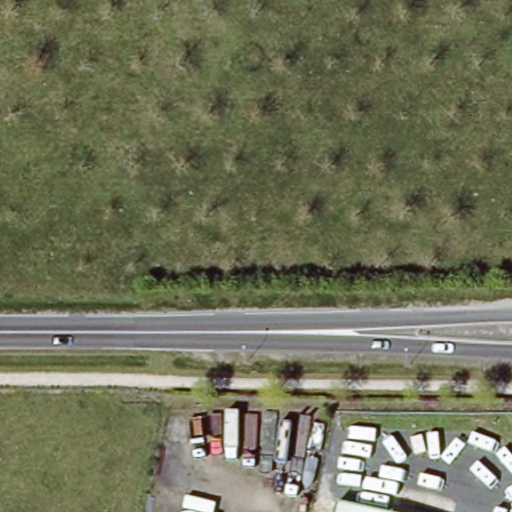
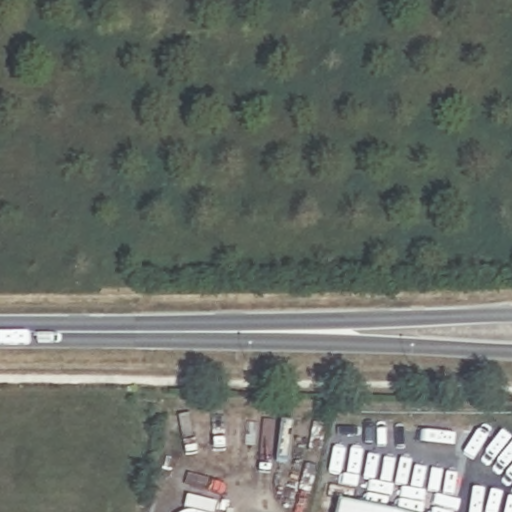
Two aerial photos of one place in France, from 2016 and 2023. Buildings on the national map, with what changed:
unchanged [(378,512),(337,512),(339,503),(378,512)]
unchanged [(189,508),(207,512),(182,512),(189,508)]

